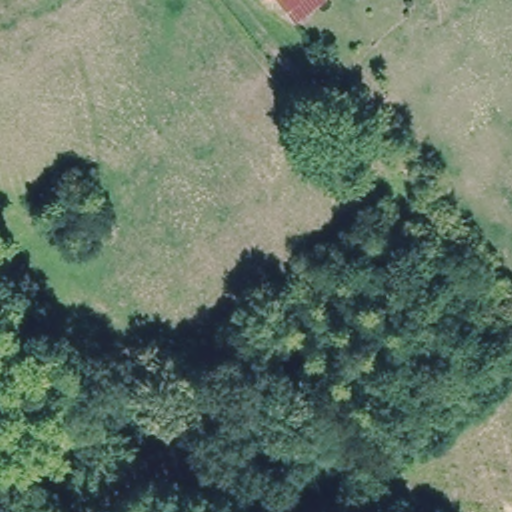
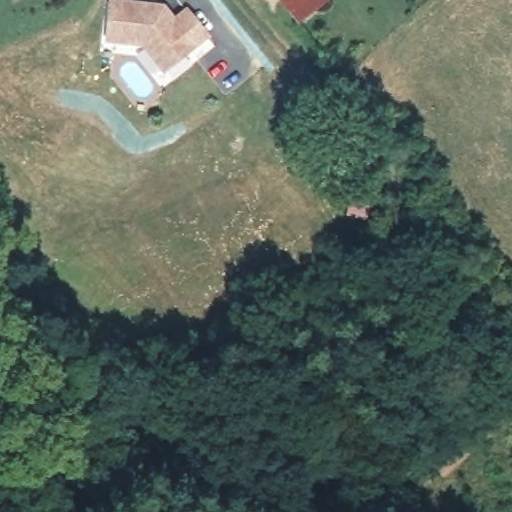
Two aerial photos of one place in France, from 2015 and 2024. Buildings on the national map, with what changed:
new [(111,0),(120,0),(157,2),(162,7),(165,5),(175,15),(187,5),(208,29),(167,65),(145,40),(110,39),(111,0)]
unchanged [(297,25),(275,0),(328,0),(297,25)]

